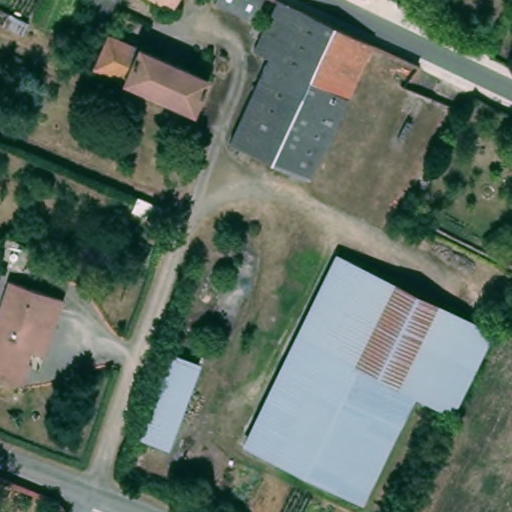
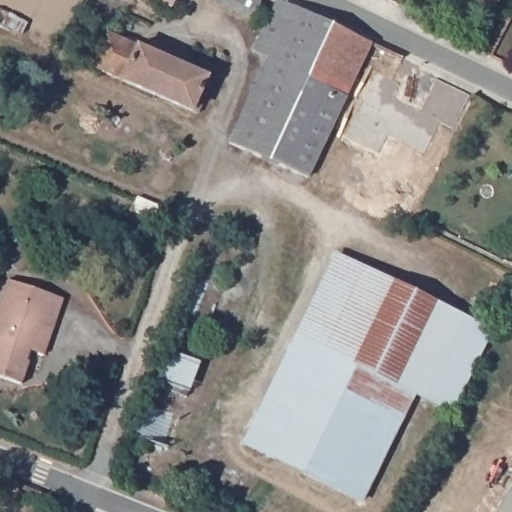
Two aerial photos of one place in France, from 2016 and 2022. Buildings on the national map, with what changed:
unchanged [(156,0),(175,0),(171,8),(156,0)]
unchanged [(224,0),(256,0),(250,12),(224,0)]
unchanged [(268,59),(253,53),(277,2),(371,45),(315,162),(307,179),(230,145),(268,59)]
unchanged [(111,31),(211,74),(197,108),(97,65),(111,31)]
unchanged [(335,251),(389,281),(487,328),(450,414),(412,395),(355,508),(238,447),(335,251)]
unchanged [(28,349),(25,360),(28,361),(19,385),(0,378),(0,300),(6,281),(60,299),(50,329),(43,354),(28,349)]
unchanged [(512,290),(512,348),(489,335),(512,290)]
unchanged [(161,343),(208,360),(179,447),(132,430),(161,343)]

